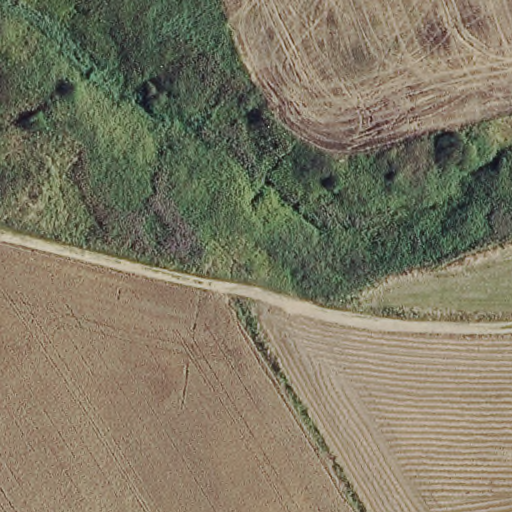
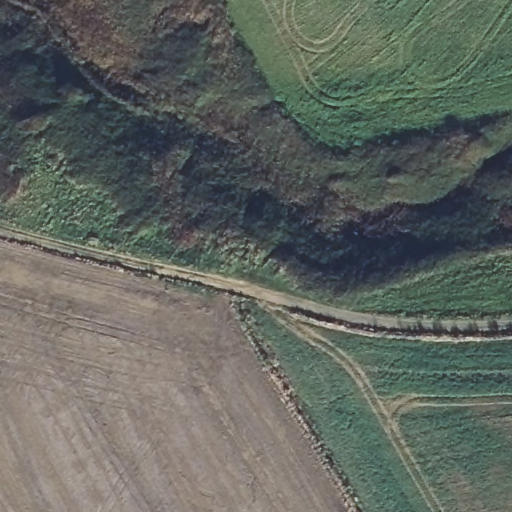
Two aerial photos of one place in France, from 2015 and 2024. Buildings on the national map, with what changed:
[]

